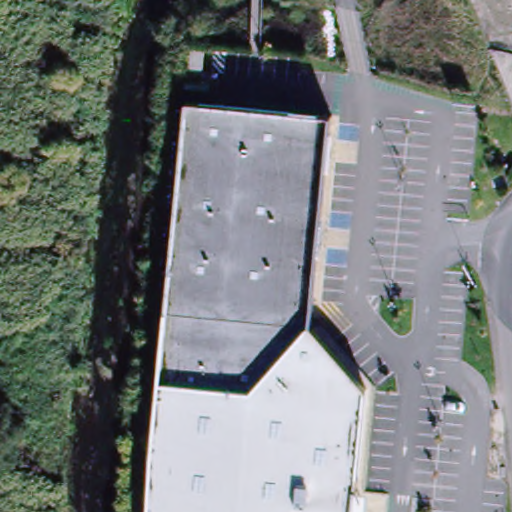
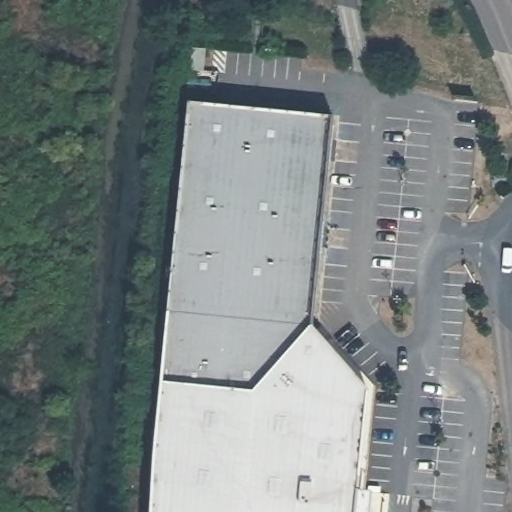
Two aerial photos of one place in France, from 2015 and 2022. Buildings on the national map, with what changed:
unchanged [(367,390),(354,512),(147,512),(150,463),(187,102),(331,116),(311,326),(367,390)]

